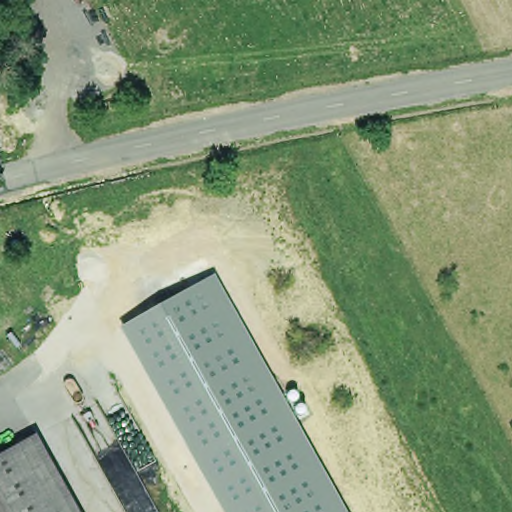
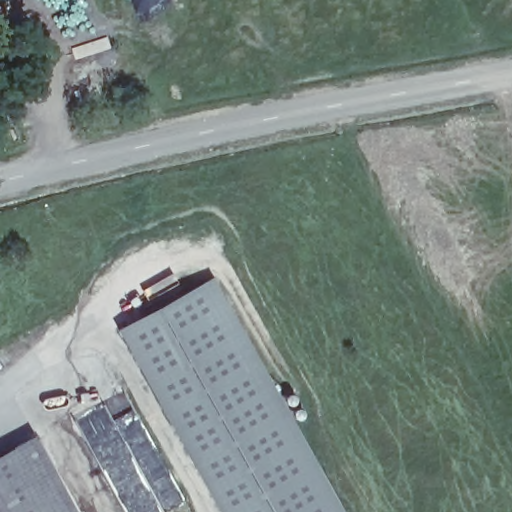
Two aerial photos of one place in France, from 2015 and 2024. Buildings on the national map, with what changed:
unchanged [(214,276),(281,396),(293,388),(307,412),(294,420),(345,512),(222,512),(120,328),(214,276)]
unchanged [(0,461),(36,439),(77,512),(0,512),(0,461)]

